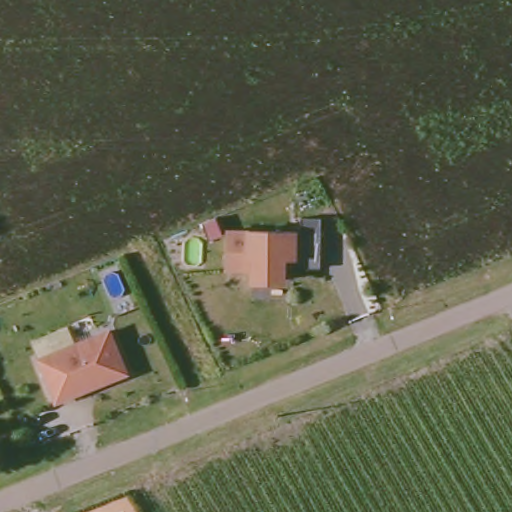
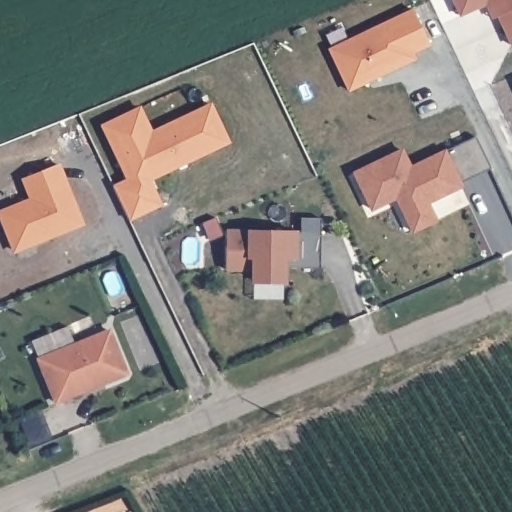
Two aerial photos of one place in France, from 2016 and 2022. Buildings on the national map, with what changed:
new [(498,17),(492,20),(485,6),(460,17),(452,0),(512,0),(512,46),(511,46),(498,17)]
new [(412,54),(416,60),(348,91),(328,49),(414,8),(430,45),(412,54)]
new [(152,179),(163,205),(130,220),(113,185),(126,180),(101,125),(141,106),(152,130),(211,102),(231,142),(152,179)]
new [(461,181),(464,187),(429,204),(437,220),(411,232),(396,201),(371,212),(353,173),(404,149),(411,165),(447,149),(448,152),(476,138),(490,167),(461,181)]
new [(0,217),(0,212),(30,199),(22,180),(60,164),(85,224),(14,252),(0,217)]
new [(291,266),(291,257),(292,232),(300,234),(300,219),(321,219),(320,268),(291,266)]
unchanged [(292,232),(291,257),(281,257),(280,279),(265,283),(250,279),(250,269),(223,268),(223,231),(292,232)]
unchanged [(108,331),(125,373),(103,382),(102,380),(96,382),(93,385),(53,400),(38,360),(108,331)]

